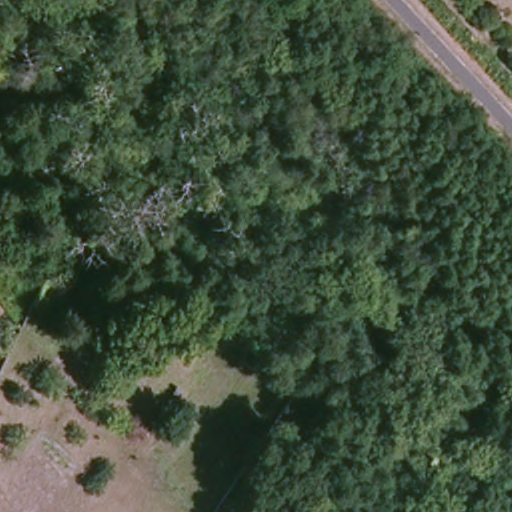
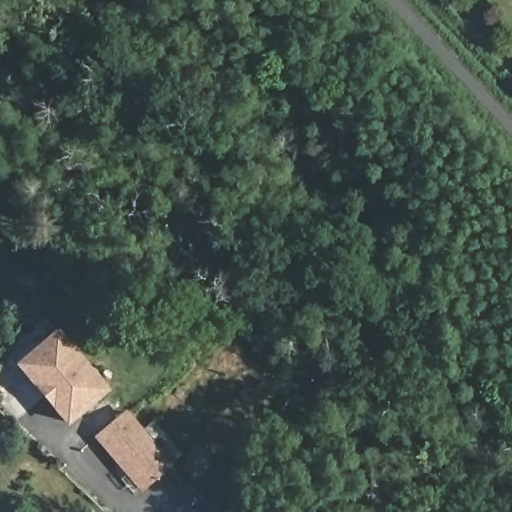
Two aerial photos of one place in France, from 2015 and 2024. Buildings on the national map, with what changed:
new [(59,328),(112,390),(71,426),(19,364),(59,328)]
new [(175,466),(142,492),(97,437),(130,411),(175,466)]
demolished [(167,501),(181,509),(179,512),(165,512),(162,509),(167,501)]

